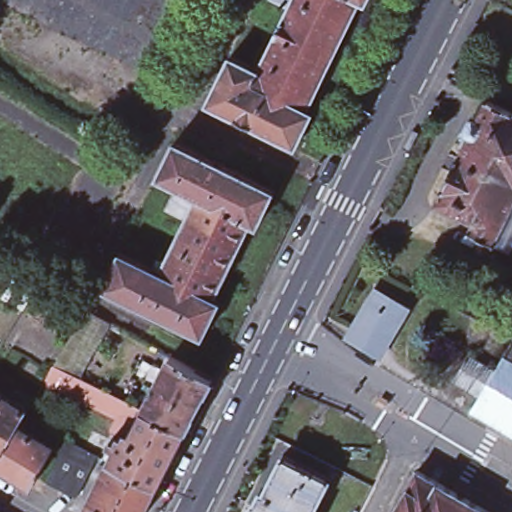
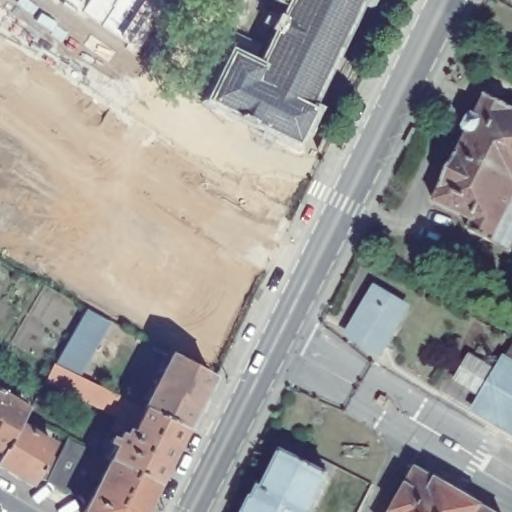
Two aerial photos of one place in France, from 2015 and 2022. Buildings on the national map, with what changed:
unchanged [(362,1),(309,109),(315,112),(298,148),(210,105),(232,57),(260,71),(292,8),(277,0),(369,0),(367,4),(362,1)]
unchanged [(507,249),(465,228),(469,220),(430,200),(458,144),(456,141),(470,114),(472,115),(482,95),(512,109),(512,239),(507,249)]
demolished [(175,139),(276,188),(259,223),(253,219),(217,295),(222,298),(205,333),(105,285),(122,250),(157,266),(162,257),(167,260),(189,213),(170,204),(179,184),(159,174),(175,139)]
unchanged [(52,286),(60,290),(57,295),(49,291),(52,286)]
unchanged [(350,337),(377,292),(408,310),(381,356),(350,337)]
unchanged [(54,385),(50,384),(47,382),(50,377),(44,374),(50,364),(60,346),(67,334),(74,321),(79,312),(82,307),(105,320),(98,334),(91,346),(84,359),(75,376),(118,398),(139,409),(140,410),(132,427),(123,422),(122,423),(117,421),(120,413),(56,381),(54,385)]
unchanged [(477,401),(485,387),(472,380),(485,358),(497,366),(505,352),(512,355),(512,422),(477,401)]
unchanged [(182,430),(140,410),(139,409),(167,353),(209,376),(182,430)]
unchanged [(0,394),(24,408),(17,422),(15,424),(5,441),(0,450),(0,394)]
unchanged [(107,460),(100,456),(107,444),(105,443),(109,438),(114,440),(122,423),(123,422),(132,427),(140,410),(182,430),(155,484),(107,460)]
unchanged [(32,475),(27,484),(0,470),(0,469),(0,450),(5,441),(15,424),(50,445),(57,434),(65,438),(95,454),(74,495),(44,480),(32,475)]
unchanged [(253,504),(255,505),(261,494),(264,495),(284,457),(330,481),(314,512),(249,512),(253,504)]
unchanged [(107,460),(155,484),(140,512),(80,512),(107,460)]
unchanged [(417,473),(486,512),(394,512),(417,473)]

